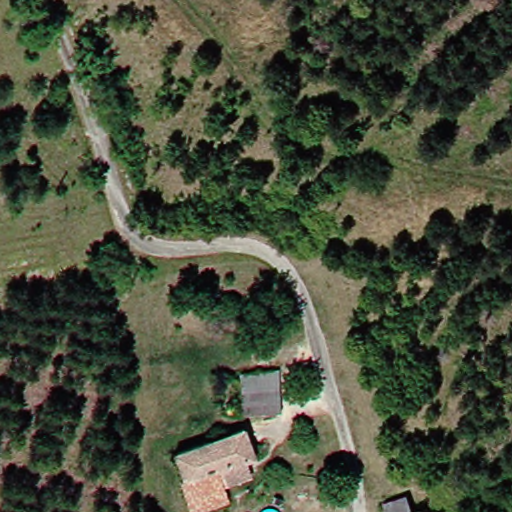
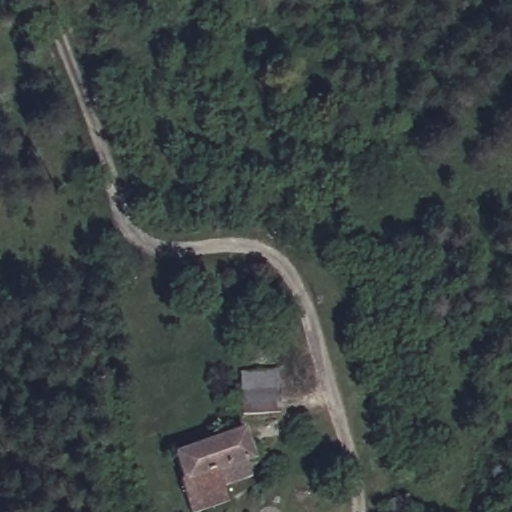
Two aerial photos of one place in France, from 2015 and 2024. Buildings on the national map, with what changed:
unchanged [(284,416),(247,416),(247,394),(243,394),(243,372),(283,370),(284,416)]
unchanged [(253,432),(261,460),(230,469),(238,505),(214,512),(196,512),(178,453),(253,432)]

